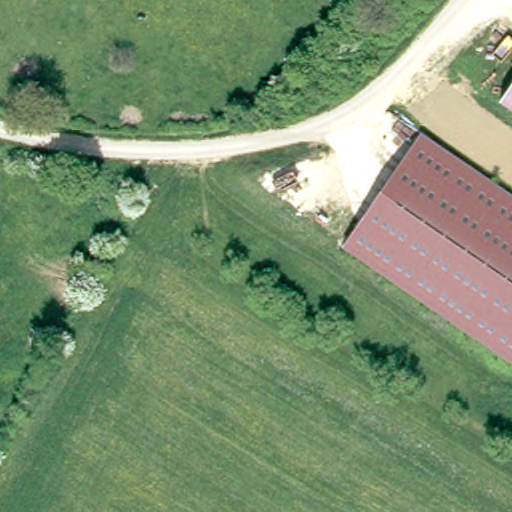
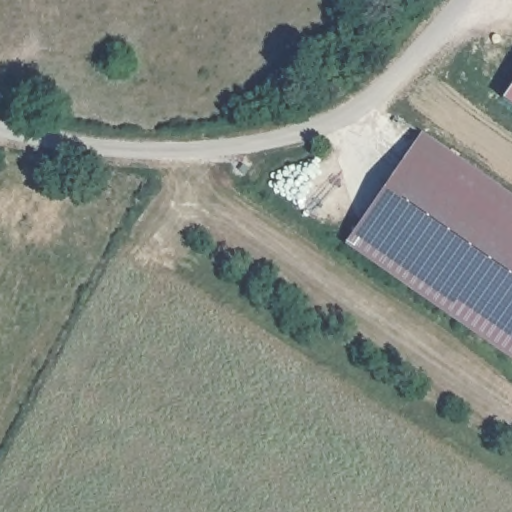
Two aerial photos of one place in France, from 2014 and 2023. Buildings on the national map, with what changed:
unchanged [(512,84),(512,107),(501,100),(512,84)]
unchanged [(424,130),(512,190),(512,357),(345,245),(424,130)]

